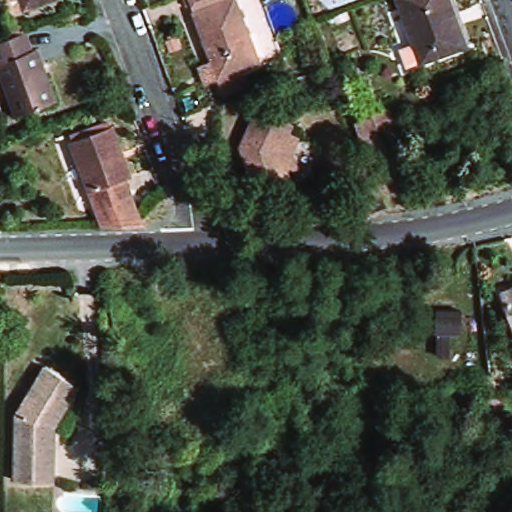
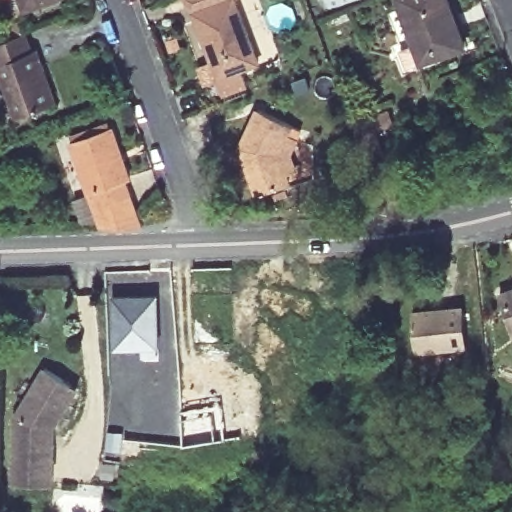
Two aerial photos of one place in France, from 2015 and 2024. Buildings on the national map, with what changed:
unchanged [(34,6),(32,0),(51,0),(34,6)]
unchanged [(209,69),(225,62),(200,0),(244,0),(270,61),(255,68),(263,84),(237,91),(232,78),(216,84),(209,69)]
unchanged [(328,9),(324,0),(352,0),(328,9)]
unchanged [(474,39),(431,54),(411,0),(458,0),(474,39)]
unchanged [(42,50),(46,50),(66,101),(27,116),(7,65),(0,67),(0,46),(34,33),(42,50)]
unchanged [(295,130),(305,135),(298,150),(304,166),(294,170),(298,179),(266,191),(248,146),(265,107),(299,122),(295,130)]
unchanged [(391,114),(395,123),(378,130),(375,120),(391,114)]
unchanged [(386,159),(369,165),(364,154),(355,128),(372,122),(386,159)]
unchanged [(112,127),(132,179),(127,181),(145,227),(106,228),(73,143),(112,127)]
new [(112,293),(162,292),(165,328),(166,328),(161,361),(142,362),(140,349),(110,350),(112,293)]
unchanged [(512,295),(512,326),(502,299),(512,295)]
unchanged [(437,308),(463,308),(464,333),(453,335),(452,358),(438,356),(437,308)]
new [(110,350),(140,349),(142,362),(161,361),(166,328),(173,327),(180,381),(185,440),(125,433),(122,455),(106,452),(110,350)]
unchanged [(20,420),(49,372),(65,381),(82,391),(81,393),(57,431),(57,442),(55,486),(31,485),(18,485),(20,420)]

